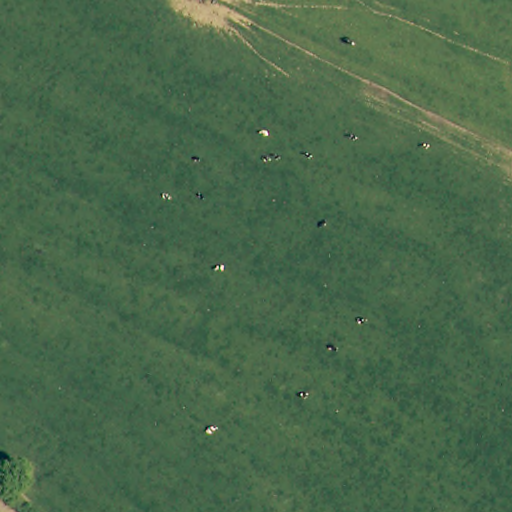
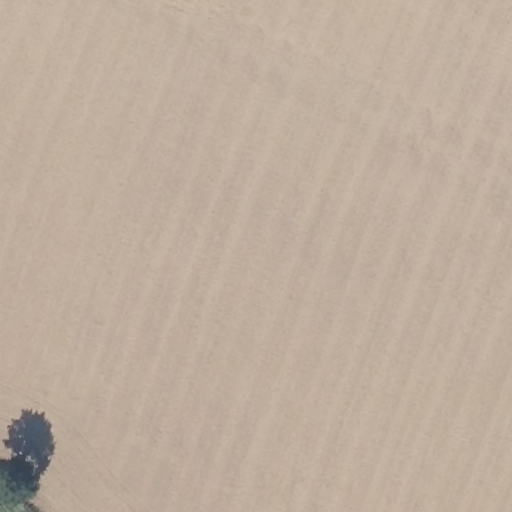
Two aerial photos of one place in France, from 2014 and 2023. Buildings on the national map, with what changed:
[]

